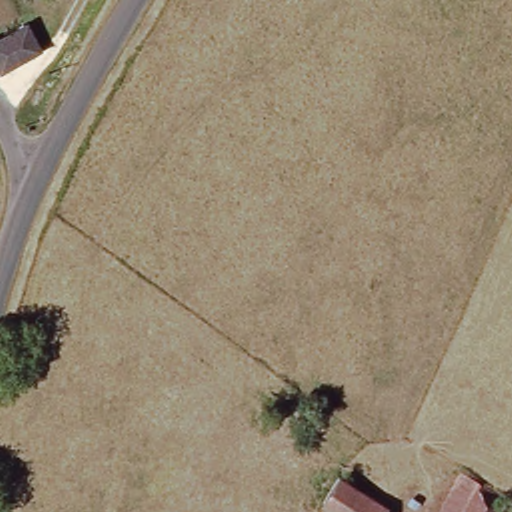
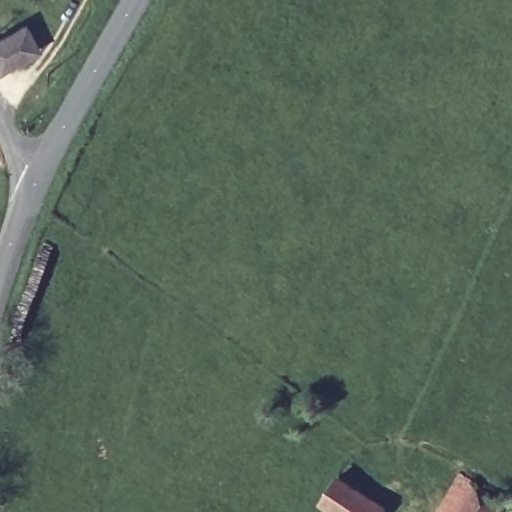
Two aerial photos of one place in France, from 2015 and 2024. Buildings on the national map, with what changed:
unchanged [(0,69),(0,43),(21,32),(31,52),(0,69)]
unchanged [(337,480),(384,510),(382,512),(327,512),(319,507),(337,480)]
unchanged [(499,501),(512,508),(512,512),(434,512),(453,480),(499,501)]

